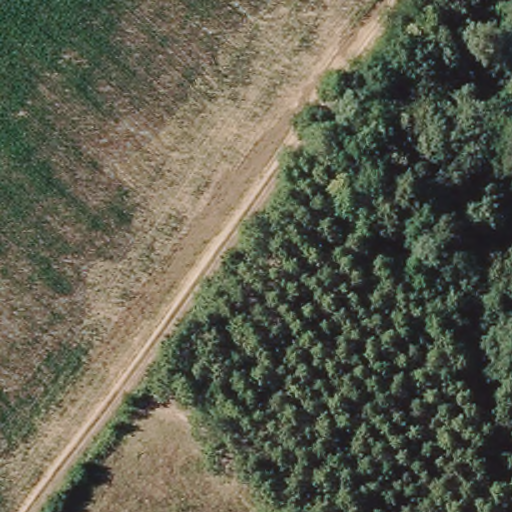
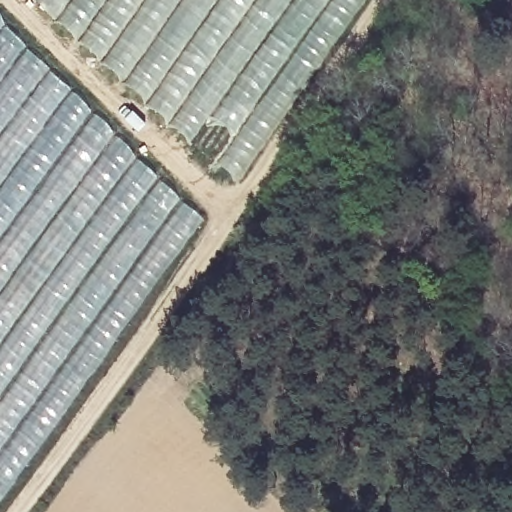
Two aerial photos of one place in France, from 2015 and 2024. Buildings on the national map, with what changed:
new [(51,68),(72,89),(95,111),(117,132),(138,156),(182,199),(149,239),(106,305),(97,319),(48,380),(0,448),(0,15),(26,44),(51,68)]
new [(149,239),(182,199),(205,219),(135,311),(129,307),(123,316),(106,305),(149,239)]
new [(97,319),(105,327),(104,329),(110,334),(109,336),(115,340),(110,346),(49,436),(0,502),(0,448),(48,380),(97,319)]

